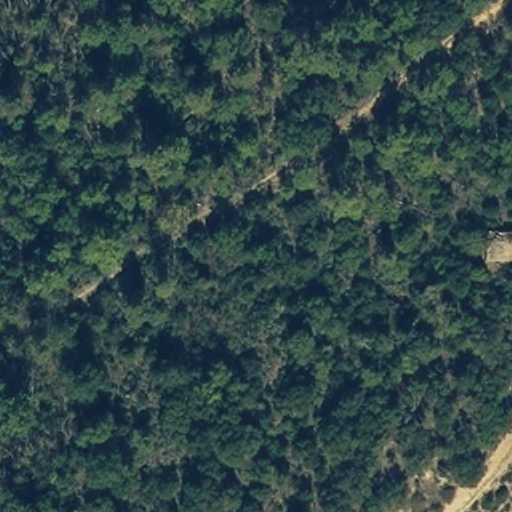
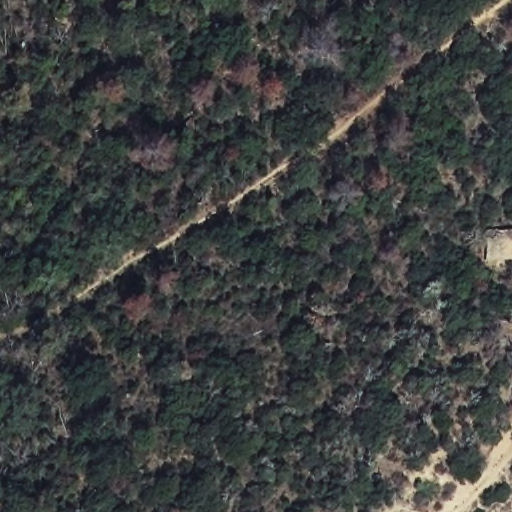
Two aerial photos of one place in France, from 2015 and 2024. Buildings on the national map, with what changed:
unchanged [(512,231),(512,260),(485,260),(486,246),(486,231),(502,231),(512,231)]

